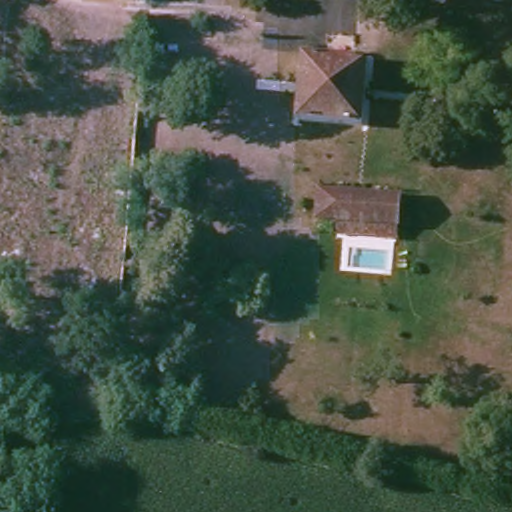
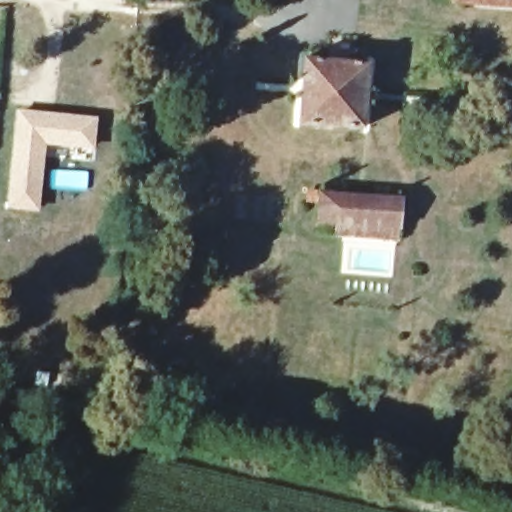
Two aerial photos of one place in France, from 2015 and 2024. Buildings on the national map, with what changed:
unchanged [(512,13),(452,10),(452,0),(512,0),(512,13)]
unchanged [(368,62),(363,128),(299,123),(303,58),(368,62)]
new [(47,144),(39,211),(7,208),(17,108),(98,117),(94,148),(47,144)]
unchanged [(342,234),(342,222),(322,220),(325,191),(404,198),(402,227),(401,239),(342,234)]

